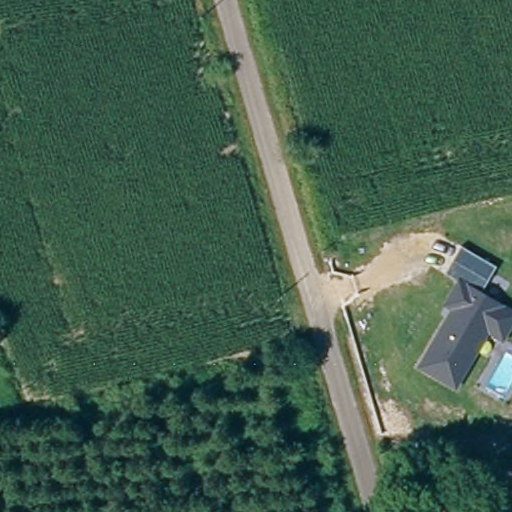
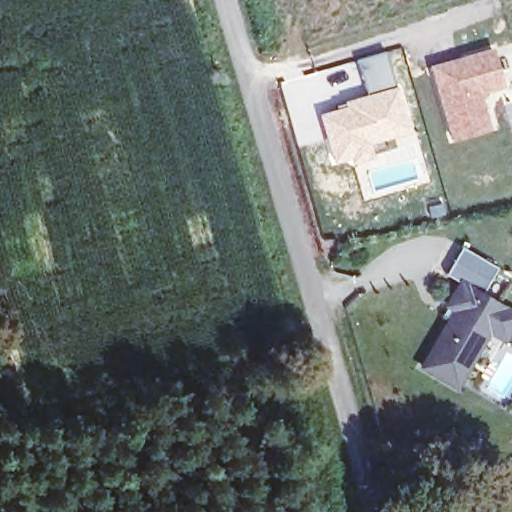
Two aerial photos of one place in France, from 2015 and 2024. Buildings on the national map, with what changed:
new [(451,139),(429,65),(491,46),(504,87),(480,94),(490,127),(451,139)]
new [(366,145),(370,158),(351,164),(350,159),(333,164),(319,117),(336,113),(334,107),(345,105),(366,98),(361,81),(355,63),(384,55),(390,73),(395,90),(403,120),(407,132),(386,139),(366,145)]
unchanged [(449,309),(442,306),(457,280),(445,274),(461,246),(496,265),(481,291),(512,309),(512,329),(504,343),(487,335),(455,390),(416,367),(449,309)]
unchanged [(458,490),(459,512),(431,512),(430,491),(458,490)]

